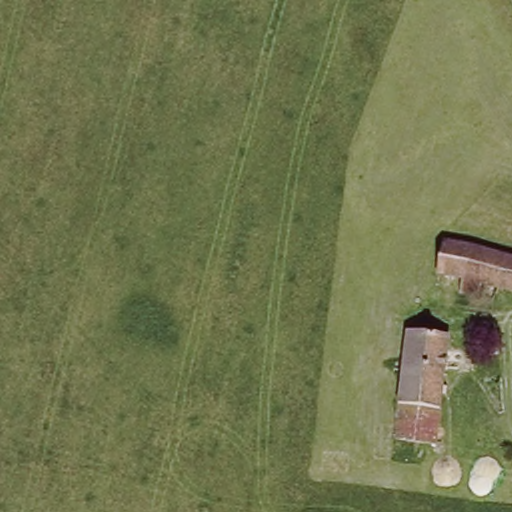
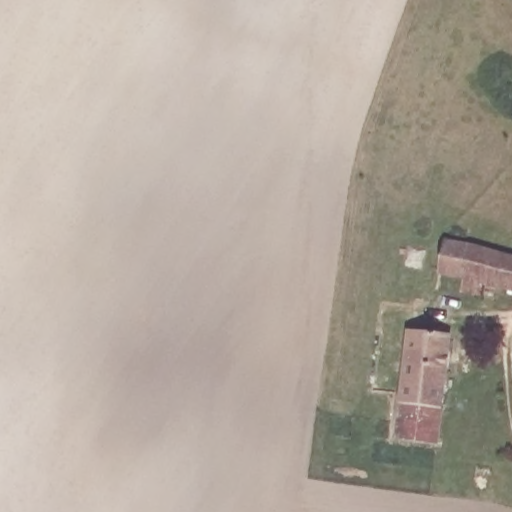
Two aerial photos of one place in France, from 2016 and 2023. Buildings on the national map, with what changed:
unchanged [(447,235),(512,250),(512,284),(498,281),(495,295),(463,288),(467,274),(442,269),(446,243),(447,235)]
unchanged [(451,318),(442,404),(445,404),(441,443),(398,437),(412,313),(451,318)]

